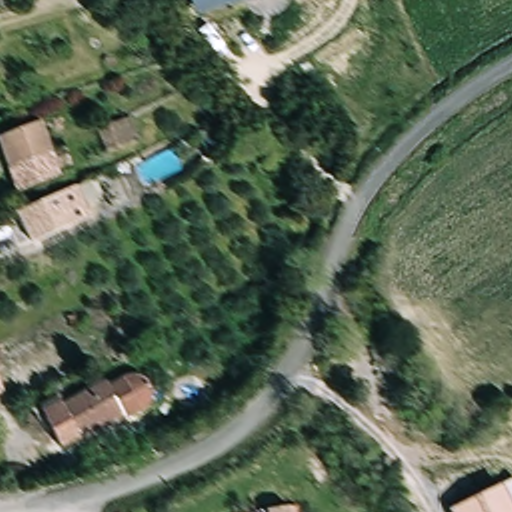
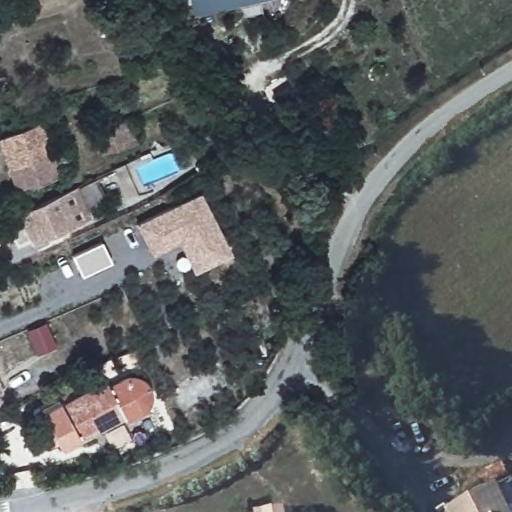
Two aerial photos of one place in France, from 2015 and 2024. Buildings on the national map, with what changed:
unchanged [(190,0),(248,0),(193,15),(190,0)]
unchanged [(123,118),(133,141),(103,153),(93,129),(123,118)]
unchanged [(46,153),(56,150),(61,163),(51,166),(54,174),(11,189),(0,159),(0,137),(35,124),(46,153)]
new [(199,191),(231,251),(192,269),(177,239),(151,253),(135,222),(199,191)]
unchanged [(21,231),(15,212),(68,194),(78,224),(45,235),(25,242),(21,231)]
unchanged [(123,418),(83,437),(80,432),(58,442),(40,402),(60,392),(68,400),(105,381),(108,389),(126,380),(131,377),(138,377),(143,378),(148,382),(153,386),(155,392),(154,399),(152,404),(140,415),(125,422),(123,418)]
unchanged [(0,395),(0,389),(2,394),(0,395)]
unchanged [(512,481),(512,512),(451,512),(450,510),(512,481)]
unchanged [(301,512),(261,512),(261,511),(301,508),(301,512)]

